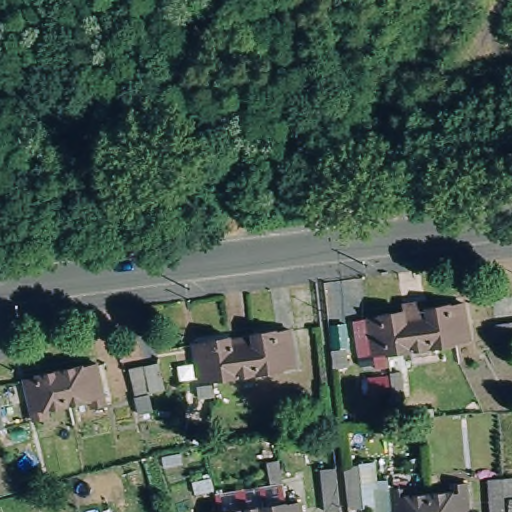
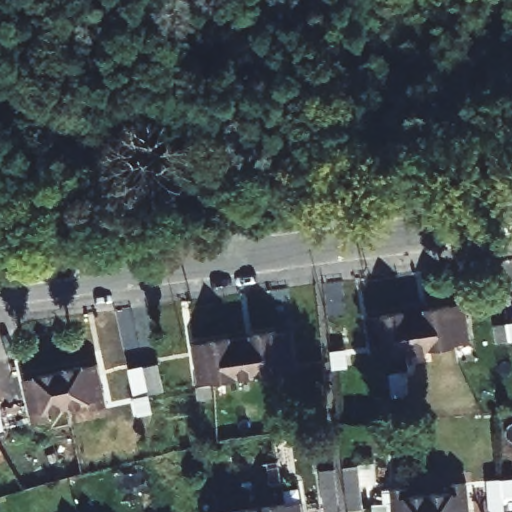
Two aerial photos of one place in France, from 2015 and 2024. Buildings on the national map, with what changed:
unchanged [(390,358),(390,356),(388,339),(411,336),(410,333),(408,316),(406,309),(428,306),(429,313),(452,310),(455,311),(466,309),(472,346),(459,347),(459,349),(390,358)]
unchanged [(376,358),(371,323),(384,321),(384,319),(408,316),(410,333),(411,336),(388,339),(390,356),(376,358)]
unchanged [(508,323),(512,323),(512,340),(511,340),(498,342),(495,325),(508,323)]
unchanged [(192,349),(206,347),(206,345),(228,342),(234,341),(234,347),(249,346),(249,338),(268,336),(269,339),(283,336),(288,372),(274,374),(274,376),(263,378),(265,393),(251,394),(249,379),(211,385),(214,405),(201,406),(198,384),(192,349)]
unchanged [(346,350),(347,372),(339,373),(336,350),(346,350)]
unchanged [(57,371),(79,367),(80,369),(93,366),(95,366),(98,379),(97,379),(102,406),(88,408),(87,401),(64,405),(57,371)]
unchanged [(151,393),(136,395),(131,369),(146,366),(151,393)]
unchanged [(34,378),(34,375),(57,371),(64,405),(43,409),(44,418),(29,421),(27,411),(29,410),(25,395),(24,395),(20,380),(34,378)]
unchanged [(156,412),(141,416),(137,398),(151,395),(156,412)]
unchanged [(5,429),(0,430),(0,412),(1,412),(5,429)]
unchanged [(276,483),(272,461),(281,460),(283,460),(286,482),(284,482),(276,483)]
unchanged [(349,508),(347,485),(349,485),(351,484),(359,484),(361,507),(353,508),(349,508)]
unchanged [(331,510),(329,486),(339,485),(341,509),(331,510)]
unchanged [(397,512),(397,489),(412,488),(412,497),(431,496),(431,512),(397,512)]
unchanged [(457,496),(457,488),(472,488),(471,512),(431,512),(431,496),(457,496)]
unchanged [(507,488),(512,488),(512,506),(506,506),(506,512),(492,512),(493,488),(507,488)]
unchanged [(235,512),(292,503),(293,506),(294,512),(235,512)]
unchanged [(308,512),(294,512),(293,506),(307,503),(308,512)]
unchanged [(512,507),(512,512),(509,512),(509,507),(512,507)]

